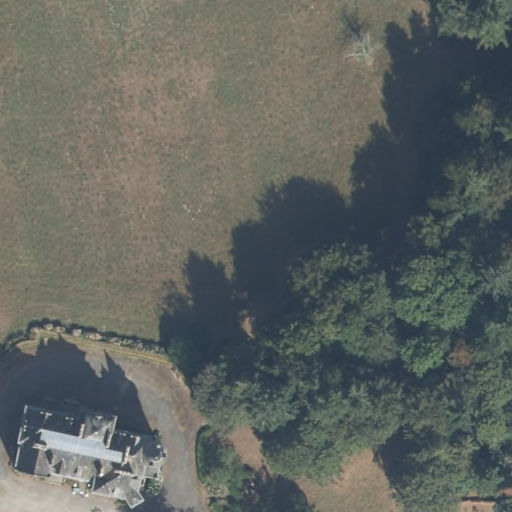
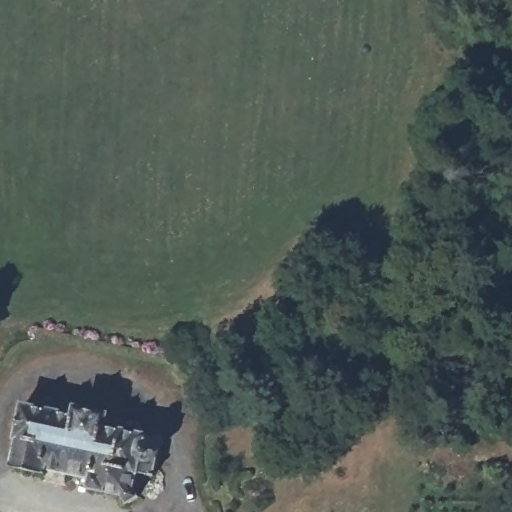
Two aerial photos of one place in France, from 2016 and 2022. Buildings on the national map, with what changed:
unchanged [(7,432),(14,401),(34,405),(41,398),(48,393),(57,393),(64,396),(72,402),(76,409),(102,413),(101,428),(137,435),(141,445),(155,448),(149,480),(139,477),(136,485),(139,494),(127,499),(122,493),(91,487),(90,473),(64,468),(61,477),(10,466),(16,435),(7,432)]

